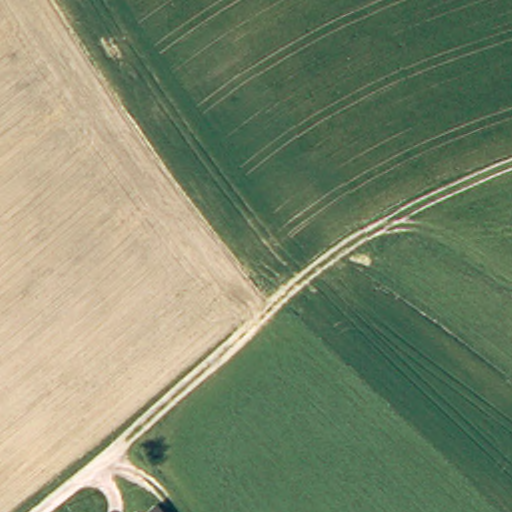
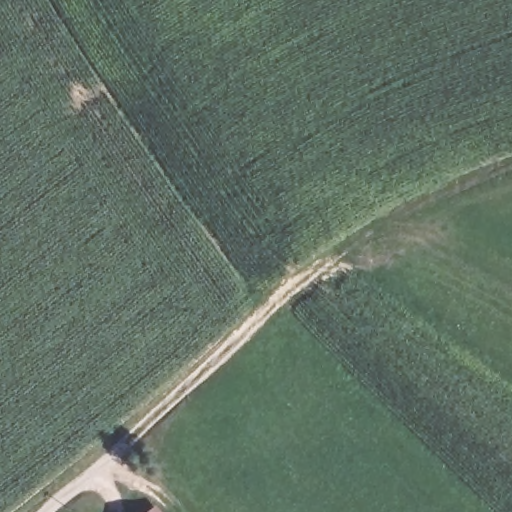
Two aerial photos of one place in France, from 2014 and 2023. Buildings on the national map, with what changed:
unchanged [(145,504),(152,512),(136,512),(145,504)]

